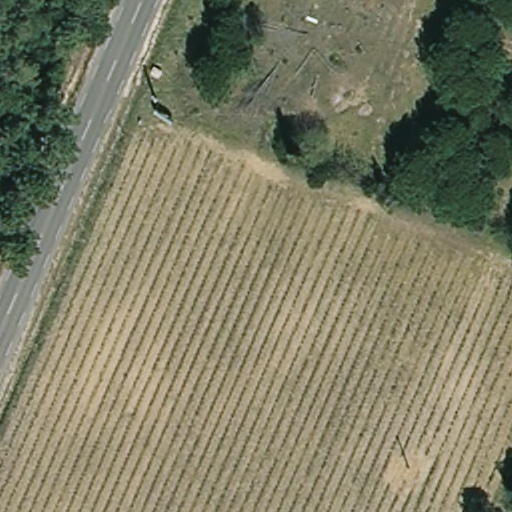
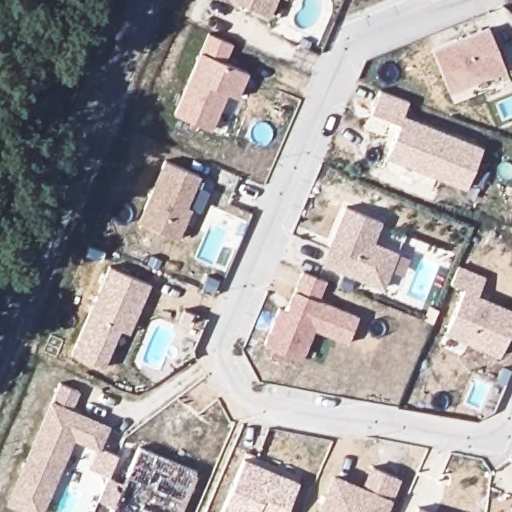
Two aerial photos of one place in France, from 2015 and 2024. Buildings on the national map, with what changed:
new [(270,16),(232,0),(276,0),(270,16)]
new [(488,27),(506,69),(450,92),(432,50),(488,27)]
new [(230,47),(223,62),(248,72),(238,97),(226,92),(210,130),(173,115),(206,36),(230,47)]
new [(408,100),(402,114),(482,146),(465,187),(386,157),(400,122),(370,112),(379,89),(408,100)]
new [(197,185),(208,190),(199,211),(188,206),(174,238),(136,222),(163,160),(200,176),(197,185)]
new [(343,206),(382,222),(375,242),(397,252),(383,288),(320,265),(343,206)]
new [(150,283),(129,332),(120,329),(103,367),(70,353),(109,265),(150,283)]
new [(456,268),(470,275),(472,271),(486,277),(478,295),(512,310),(512,328),(500,356),(445,332),(463,289),(450,283),(456,268)]
new [(314,331),(302,361),(262,345),(277,307),(285,311),(301,271),(325,281),(318,300),(358,316),(347,344),(314,331)]
new [(43,512),(25,512),(7,502),(58,383),(80,392),(72,409),(110,425),(98,451),(73,441),(43,512)]
new [(198,471),(181,512),(111,512),(112,507),(96,499),(107,476),(87,467),(95,450),(98,451),(100,447),(118,453),(108,476),(122,482),(138,445),(198,471)]
new [(285,512),(221,512),(243,458),(298,481),(285,512)]
new [(370,465),(400,477),(391,497),(392,498),(386,512),(316,512),(333,473),(360,483),(370,465)]
new [(414,512),(416,506),(430,512),(414,512)]
new [(512,512),(510,512),(512,508),(512,512)]

